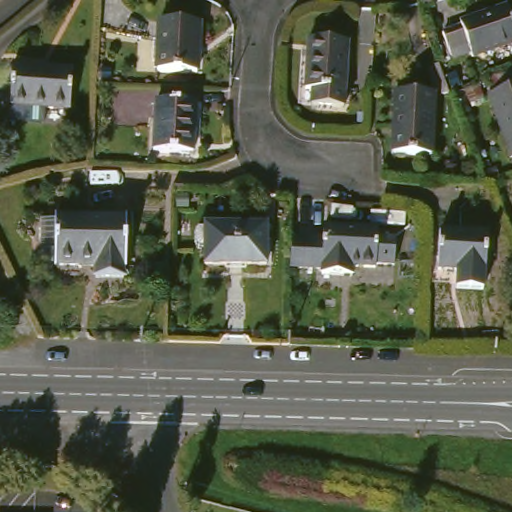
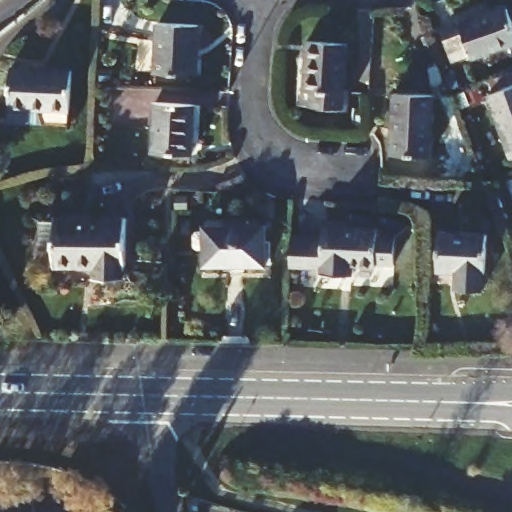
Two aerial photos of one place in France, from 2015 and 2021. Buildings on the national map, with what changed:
unchanged [(461,25),(510,8),(512,15),(512,47),(472,60),(471,57),(452,64),(442,35),(462,27),(461,25)]
unchanged [(165,21),(205,24),(201,75),(162,72),(165,21)]
unchanged [(320,36),(359,40),(354,105),(329,104),(315,102),(316,85),(320,36)]
unchanged [(13,65),(75,69),(72,110),(10,105),(13,65)]
unchanged [(512,91),(512,158),(488,99),(512,91)]
unchanged [(400,142),(403,92),(442,95),(438,155),(421,155),(399,153),(400,142)]
unchanged [(162,102),(202,105),(197,155),(158,152),(162,102)]
unchanged [(67,265),(67,250),(54,249),(54,220),(69,220),(69,216),(101,217),(99,265),(67,265)]
unchanged [(101,217),(135,218),(134,266),(132,266),(132,280),(109,279),(110,265),(99,265),(101,217)]
unchanged [(204,249),(204,232),(212,232),(212,226),(275,225),(275,265),(213,265),(212,249),(204,249)]
unchanged [(302,236),(330,238),(331,227),(367,230),(365,270),(352,269),(351,277),(327,275),(327,270),(300,267),(302,236)]
unchanged [(382,231),(382,239),(400,240),(397,270),(381,268),(381,271),(365,270),(367,230),(382,231)]
unchanged [(448,231),(493,234),(491,288),(466,287),(467,271),(446,270),(448,231)]

